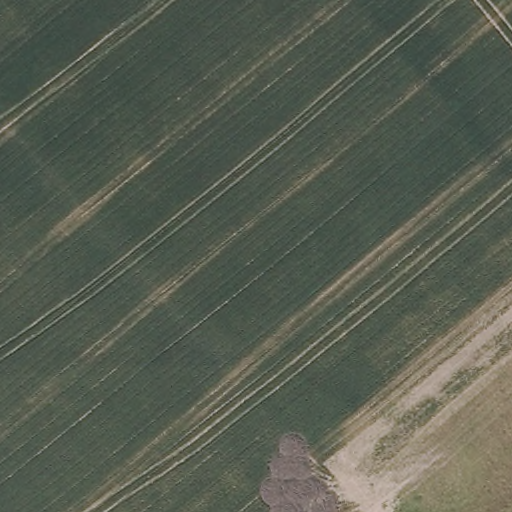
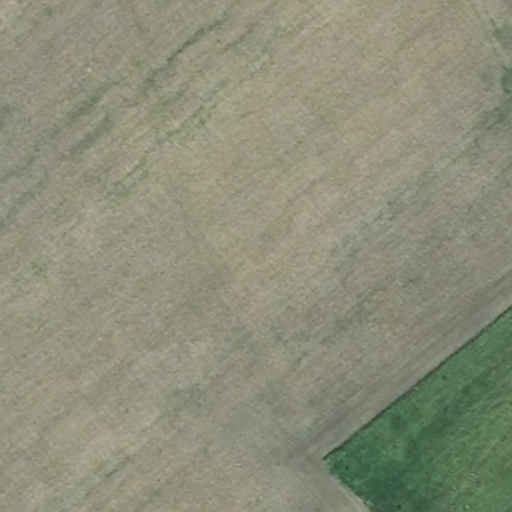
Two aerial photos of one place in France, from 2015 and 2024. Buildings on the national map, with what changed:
[]

